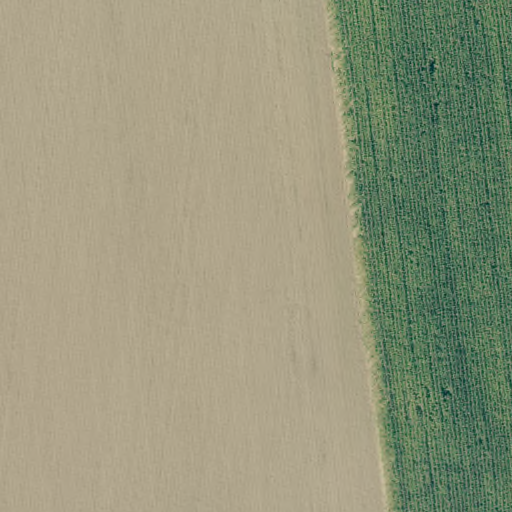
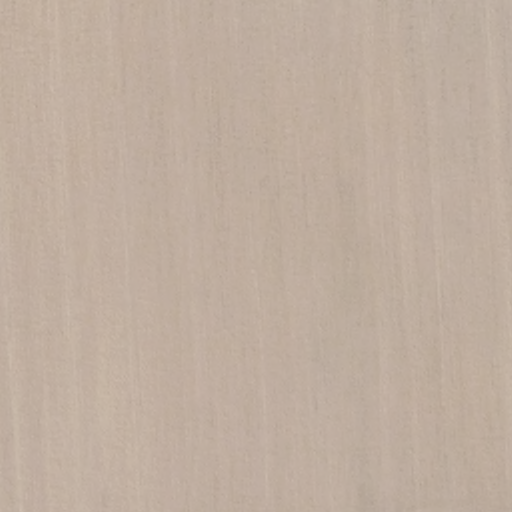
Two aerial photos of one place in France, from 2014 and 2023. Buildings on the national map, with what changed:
[]

